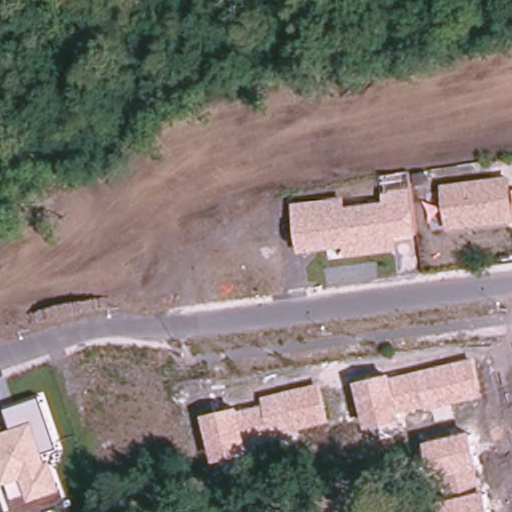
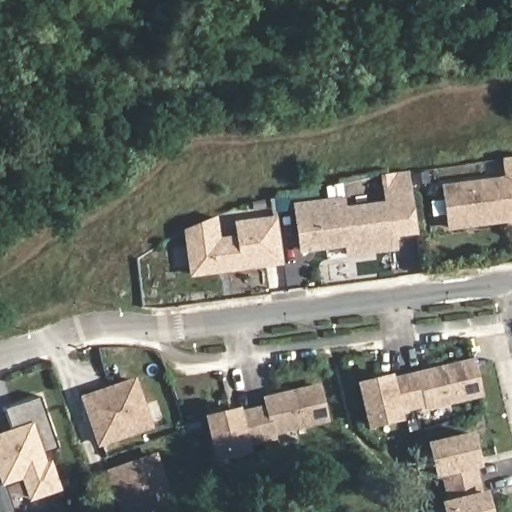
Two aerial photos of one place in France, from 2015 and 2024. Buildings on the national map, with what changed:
unchanged [(418,234),(396,237),(397,251),(346,257),(345,249),(299,254),(293,204),(345,198),(346,205),(384,201),(381,175),(412,173),(418,234)]
unchanged [(512,223),(448,231),(442,184),(511,176),(512,188),(512,223)]
new [(191,277),(183,229),(217,215),(220,238),(237,235),(236,220),(277,215),(284,264),(191,277)]
unchanged [(483,399),(432,410),(430,407),(402,413),(405,422),(367,429),(357,383),(392,374),(475,359),(483,399)]
new [(99,448),(80,397),(136,377),(155,429),(99,448)]
unchanged [(328,421),(249,439),(252,454),(216,464),(205,417),(242,409),(262,406),(260,396),(320,384),(328,421)]
unchanged [(59,448),(44,453),(47,463),(52,461),(62,492),(29,502),(26,495),(12,500),(7,484),(1,487),(0,485),(0,434),(12,429),(5,409),(41,398),(59,448)]
unchanged [(493,512),(444,512),(442,502),(449,499),(443,476),(436,477),(428,442),(473,432),(493,512)]
new [(164,512),(121,512),(106,471),(157,452),(177,508),(164,512)]

